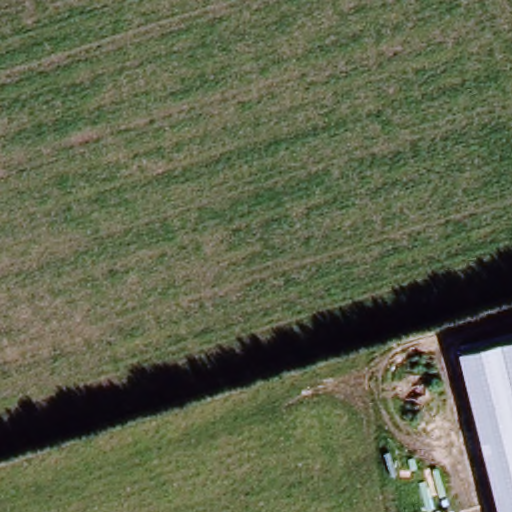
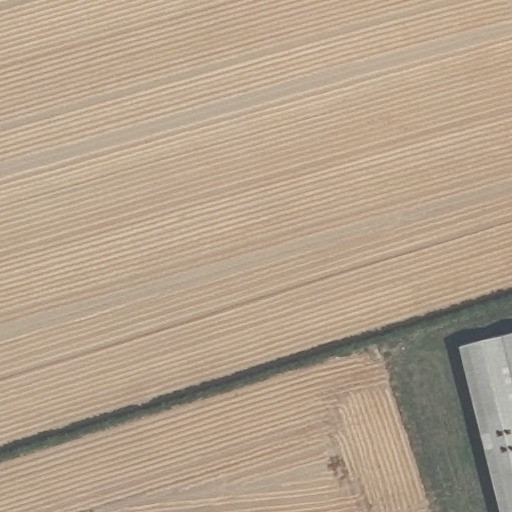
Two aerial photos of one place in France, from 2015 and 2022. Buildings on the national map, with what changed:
unchanged [(512,343),(512,512),(499,512),(462,357),(512,343)]

